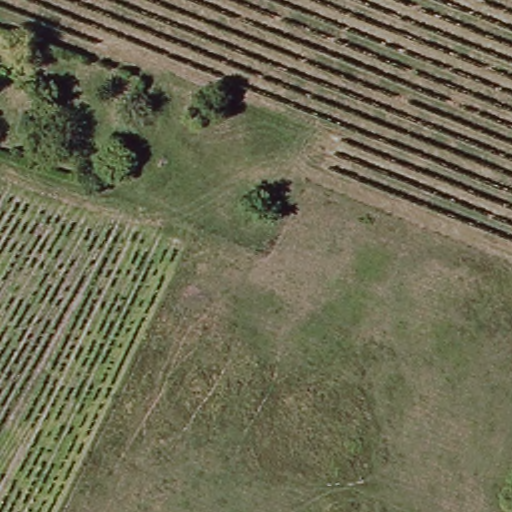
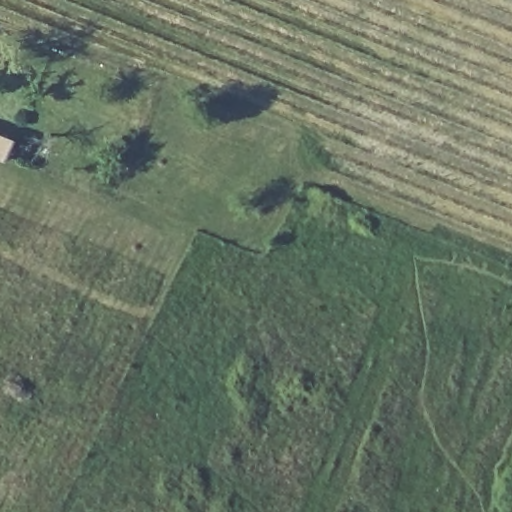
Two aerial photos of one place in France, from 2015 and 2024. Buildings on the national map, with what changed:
new [(0,155),(0,131),(17,137),(9,158),(0,155)]

